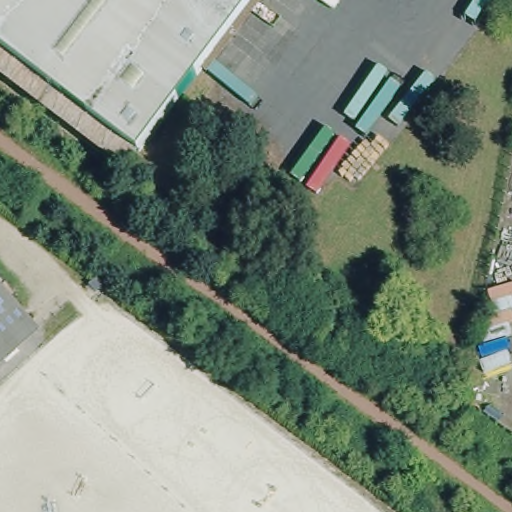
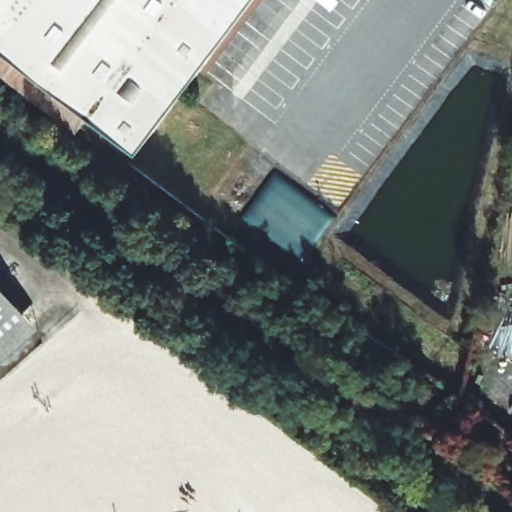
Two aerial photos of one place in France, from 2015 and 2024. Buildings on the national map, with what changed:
unchanged [(0,74),(0,0),(253,0),(137,152),(126,170),(0,74)]
unchanged [(25,322),(0,344),(0,292),(25,322)]

